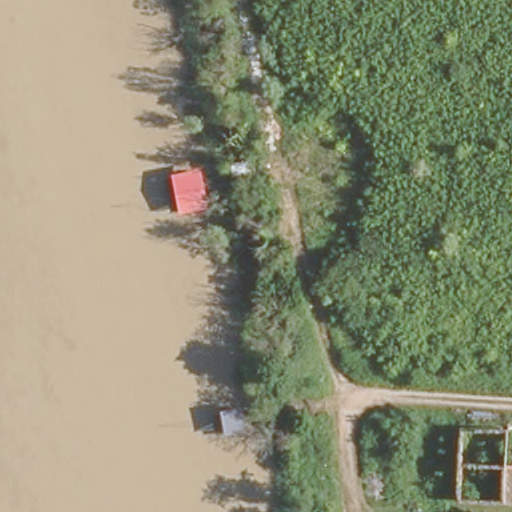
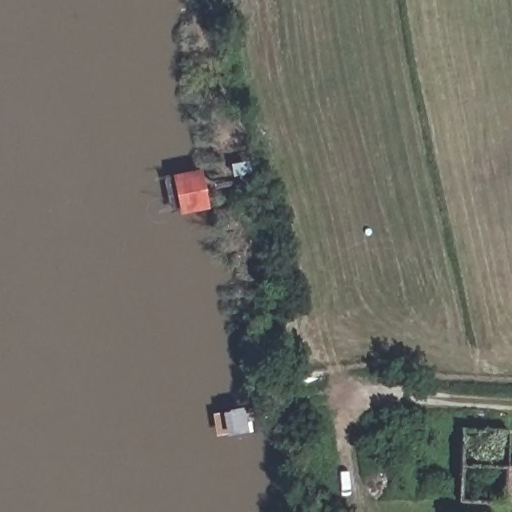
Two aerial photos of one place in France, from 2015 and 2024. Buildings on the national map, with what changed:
unchanged [(214,210),(181,217),(172,176),(205,169),(214,210)]
unchanged [(503,501),(506,459),(512,459),(512,501),(503,501)]

